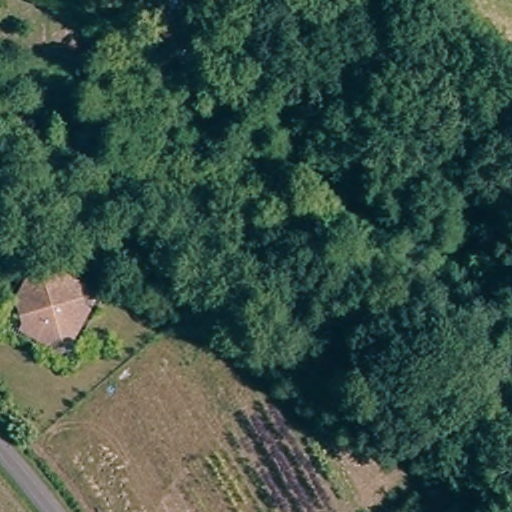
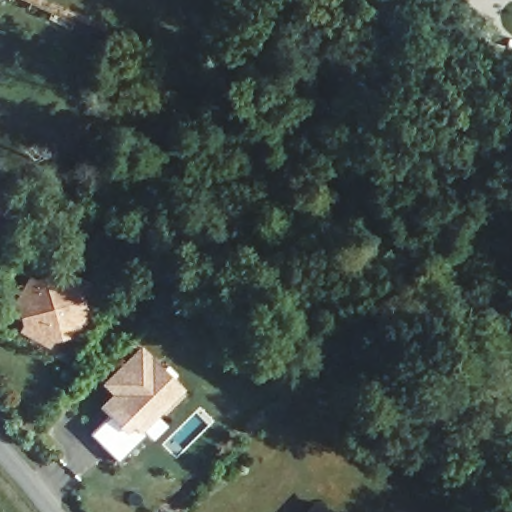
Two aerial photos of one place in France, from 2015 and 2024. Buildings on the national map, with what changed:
unchanged [(32,286),(35,288),(54,282),(56,278),(82,291),(81,295),(87,314),(89,315),(91,315),(78,341),(74,340),(70,341),(55,346),(53,349),(27,336),(29,333),(23,314),(19,312),(32,286)]
new [(111,409),(106,404),(120,392),(108,378),(144,346),(175,380),(183,389),(158,412),(142,427),(148,433),(119,460),(92,430),(113,411),(111,409)]
new [(322,503),(331,512),(312,512),(322,503)]

